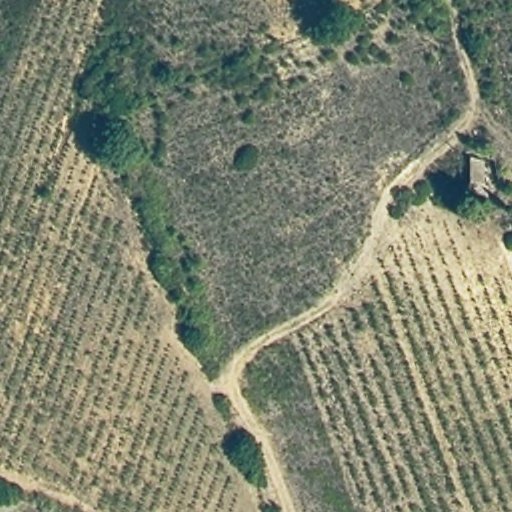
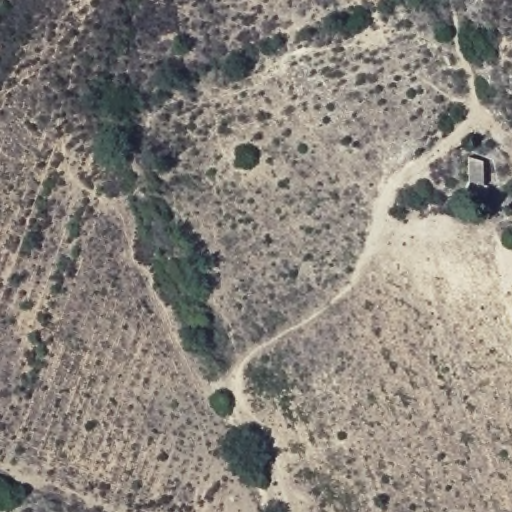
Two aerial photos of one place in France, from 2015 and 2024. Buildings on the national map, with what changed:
unchanged [(482,163),(482,193),(462,192),(460,160),(482,163)]

